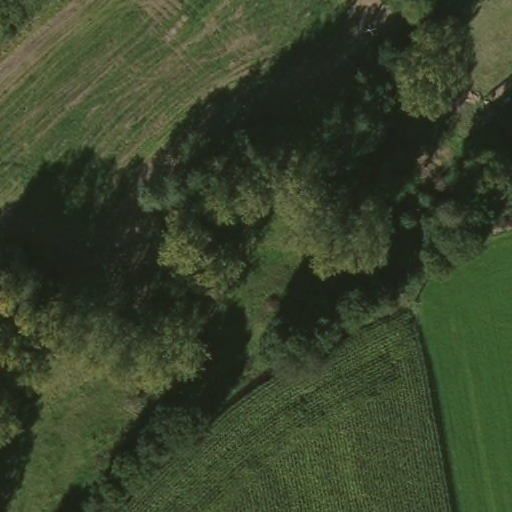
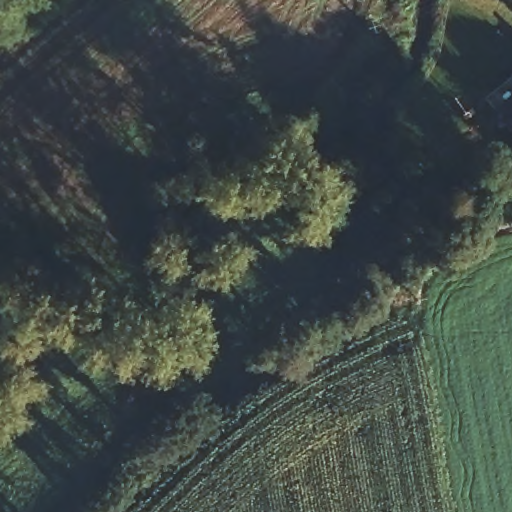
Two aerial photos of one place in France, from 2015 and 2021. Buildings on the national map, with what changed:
unchanged [(512,116),(512,126),(508,121),(512,116)]

